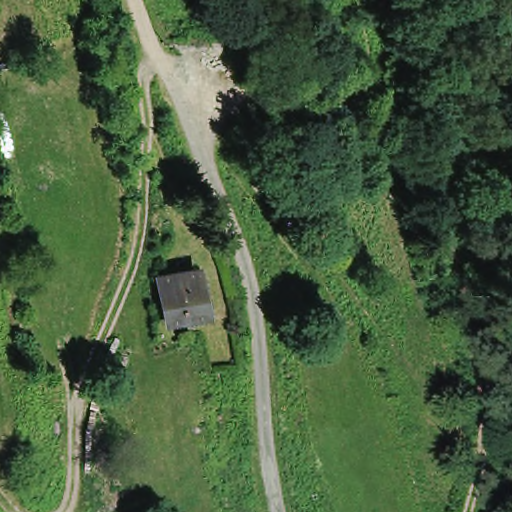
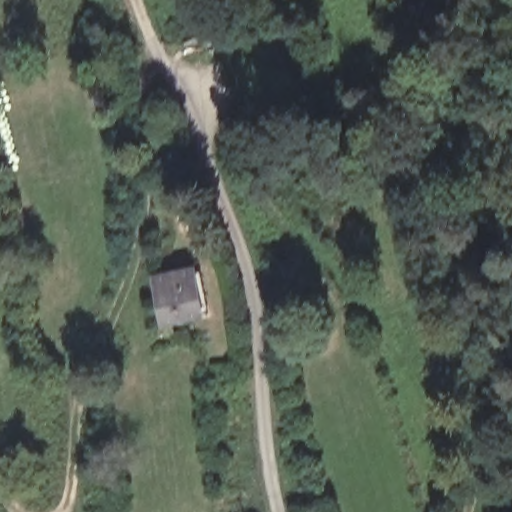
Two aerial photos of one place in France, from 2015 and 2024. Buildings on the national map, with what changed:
unchanged [(165,297),(204,291),(210,327),(171,333),(165,297)]

